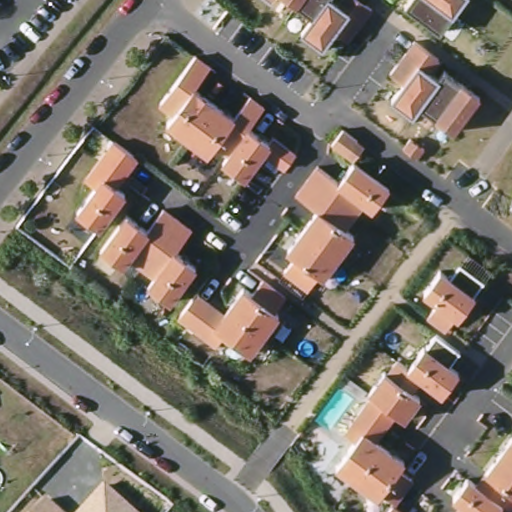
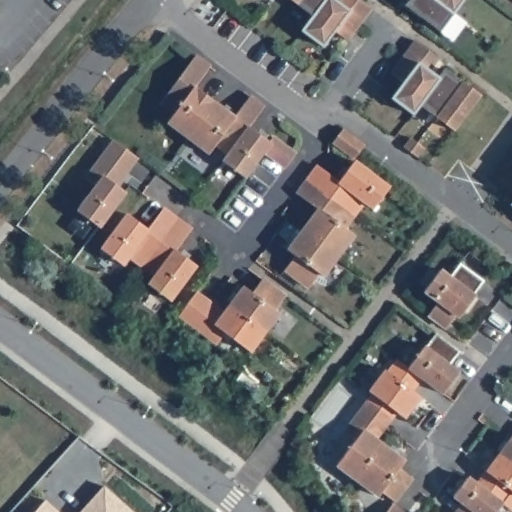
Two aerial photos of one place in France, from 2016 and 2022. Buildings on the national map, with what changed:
unchanged [(271,1),(271,0),(272,0),(271,1)]
unchanged [(337,2),(339,0),(360,0),(371,8),(347,41),(333,31),(321,46),(300,30),(312,15),(292,0),(334,0),(337,2)]
unchanged [(439,31),(404,5),(408,0),(462,0),(439,31)]
unchanged [(438,58),(428,71),(437,77),(444,69),(479,96),(453,130),(419,105),(412,114),(391,98),(403,82),(389,72),(414,40),(438,58)]
unchanged [(282,169),(263,152),(242,180),(218,161),(223,153),(214,146),(206,155),(165,123),(171,114),(156,104),(195,52),(211,64),(195,85),(233,115),(250,94),(264,105),(248,127),(268,142),(272,135),(295,151),(282,169)]
unchanged [(352,159),(346,154),(331,142),(342,128),(357,139),(363,144),(352,159)]
unchanged [(410,137),(424,148),(417,157),(403,147),(410,137)]
unchanged [(75,210),(95,183),(83,176),(111,138),(137,157),(117,186),(126,192),(98,227),(75,210)]
unchanged [(315,167),(336,184),(352,165),(383,189),(366,210),(356,203),(338,228),(350,239),(321,277),(318,275),(309,287),(284,270),(291,258),(283,252),(313,211),(295,193),(315,167)]
unchanged [(124,219),(144,233),(161,213),(187,232),(174,252),(193,267),(168,302),(147,287),(155,275),(131,255),(124,264),(101,247),(124,219)]
unchanged [(434,306),(420,296),(435,272),(449,280),(456,267),(479,285),(471,297),(456,320),(452,317),(442,330),(427,317),(434,306)]
unchanged [(193,296),(218,315),(238,288),(249,295),(259,283),(281,301),(272,313),(277,317),(249,354),(220,333),(213,345),(176,319),(193,296)]
unchanged [(351,442),(341,433),(368,396),(366,393),(380,373),(384,376),(393,362),(404,370),(419,348),(429,336),(456,355),(447,366),(454,372),(437,397),(416,382),(409,393),(417,401),(402,420),(393,415),(373,440),(400,463),(375,498),(333,467),(351,442)]
unchanged [(450,501),(466,480),(473,486),(481,473),(509,438),(512,440),(512,497),(507,493),(501,502),(494,512),(455,512),(458,508),(450,501)]
unchanged [(131,512),(80,512),(103,486),(131,512)]
unchanged [(58,512),(35,512),(45,501),(58,512)]
unchanged [(398,512),(386,512),(390,507),(398,512)]

